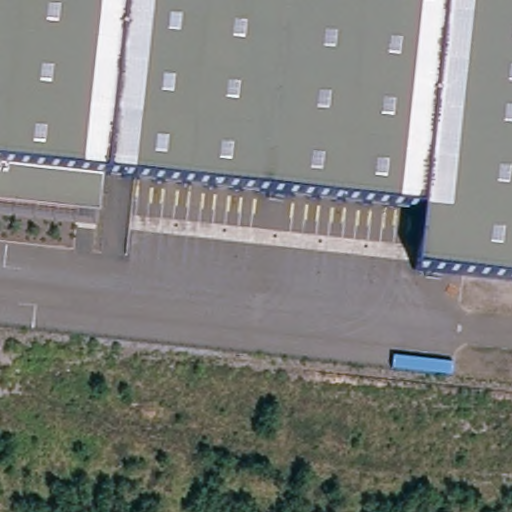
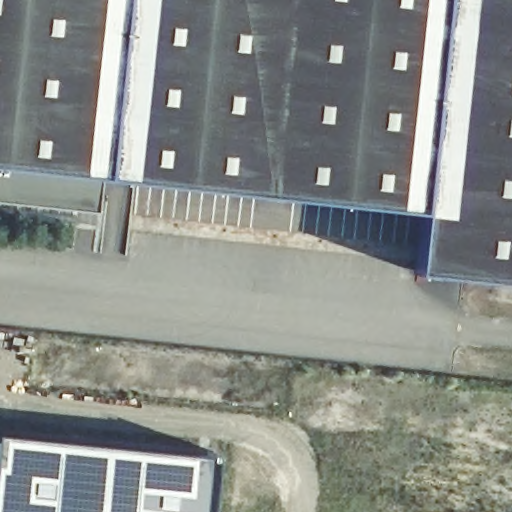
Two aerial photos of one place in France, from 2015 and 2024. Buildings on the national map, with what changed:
unchanged [(0,204),(0,0),(512,0),(512,285),(413,275),(420,215),(99,179),(95,215),(75,212),(0,204)]
new [(205,502),(204,512),(0,512),(0,432),(207,453),(205,502)]

